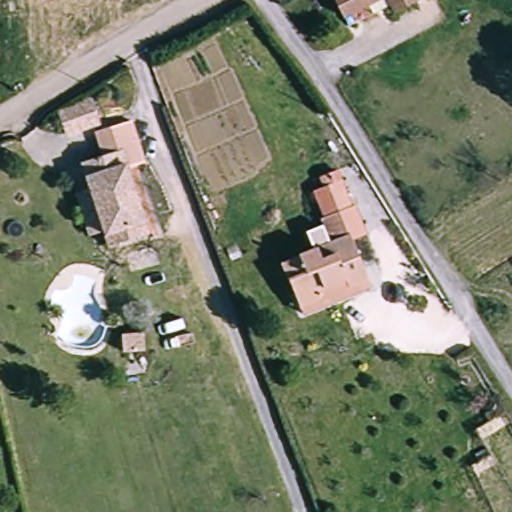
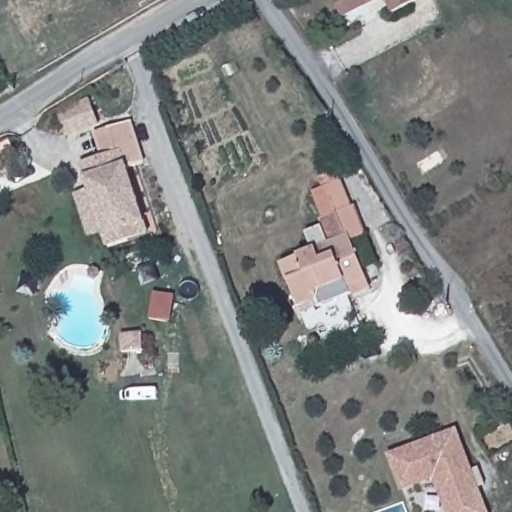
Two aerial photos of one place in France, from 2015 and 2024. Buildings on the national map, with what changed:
unchanged [(345,16),(336,0),(377,0),(345,16)]
unchanged [(398,12),(392,2),(390,0),(420,0),(398,12)]
new [(90,90),(98,113),(66,124),(58,100),(90,90)]
unchanged [(132,248),(108,255),(80,162),(97,157),(89,130),(122,119),(137,166),(128,170),(147,230),(151,242),(132,248)]
unchanged [(303,318),(300,310),(283,266),(332,247),(322,222),(326,221),(316,195),(325,191),(321,180),(330,177),(338,174),(353,210),(356,210),(367,237),(353,243),(369,284),(372,292),(303,318)]
new [(401,491),(387,454),(458,427),(490,512),(446,512),(434,478),(401,491)]

